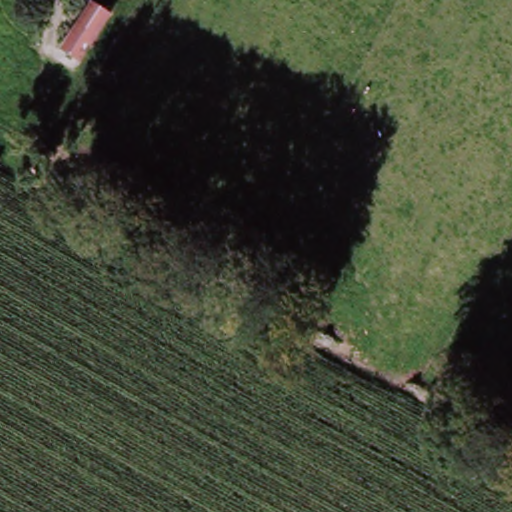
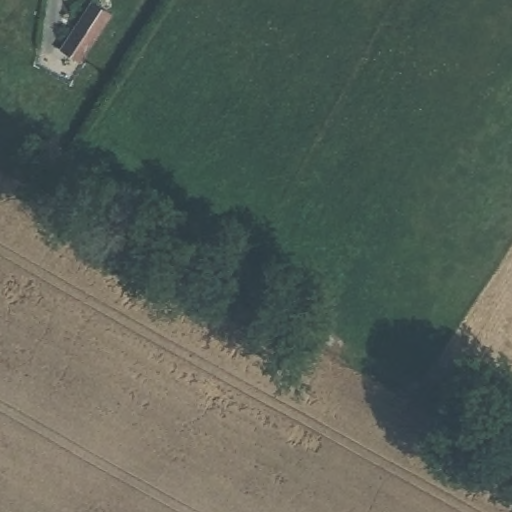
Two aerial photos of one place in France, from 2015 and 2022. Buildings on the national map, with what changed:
unchanged [(60,32),(72,14),(80,0),(107,0),(114,5),(98,30),(85,48),(60,32)]

